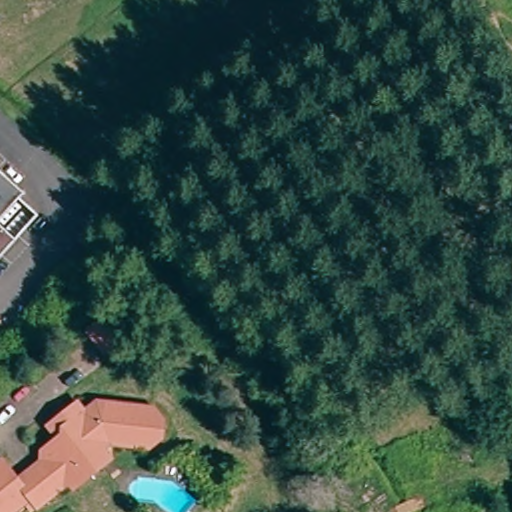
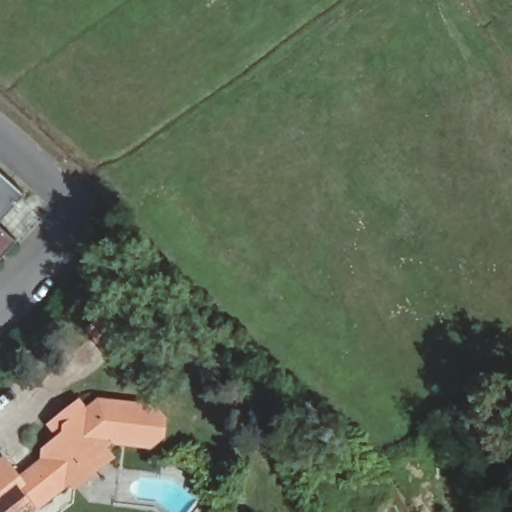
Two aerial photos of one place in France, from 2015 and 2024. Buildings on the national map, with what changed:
unchanged [(0,165),(28,189),(24,194),(0,221),(0,165)]
unchanged [(0,260),(0,221),(24,194),(43,210),(0,260)]
unchanged [(89,332),(116,307),(145,339),(119,363),(89,332)]
unchanged [(74,467),(73,471),(69,488),(46,507),(40,498),(24,512),(0,512),(0,465),(5,461),(20,478),(51,450),(46,443),(58,433),(45,417),(68,398),(75,405),(90,390),(149,385),(162,398),(161,417),(147,431),(109,436),(108,440),(116,451),(84,478),(74,467)]

